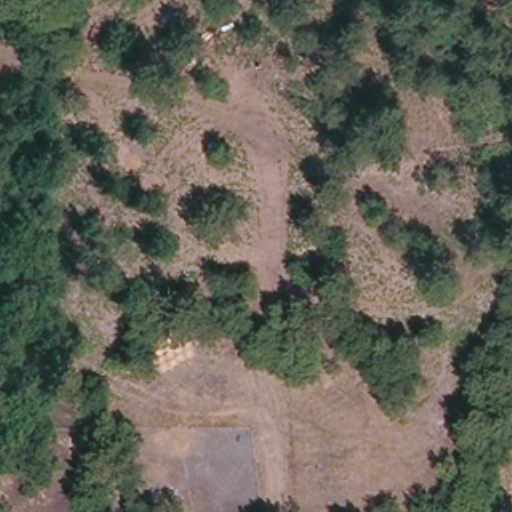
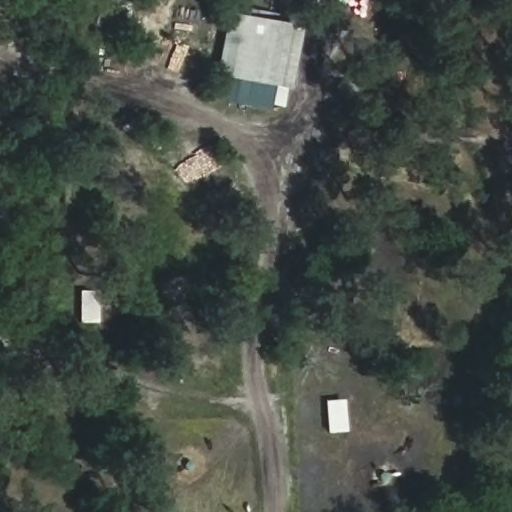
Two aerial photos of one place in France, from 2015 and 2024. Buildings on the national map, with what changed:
new [(231,102),(210,99),(228,13),(300,26),(287,91),(276,89),(270,110),(231,102)]

